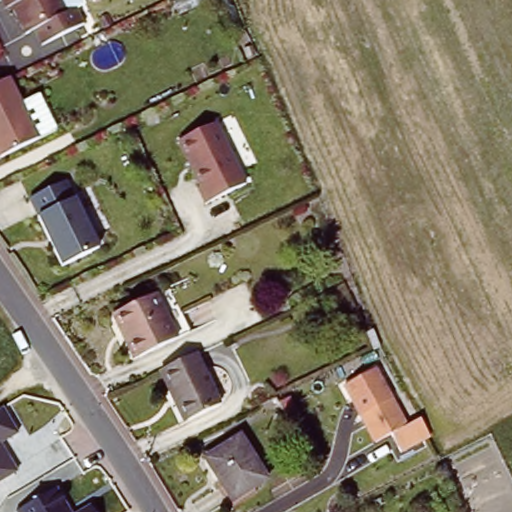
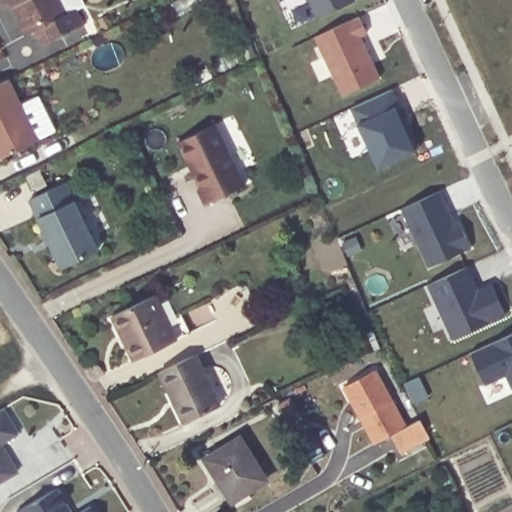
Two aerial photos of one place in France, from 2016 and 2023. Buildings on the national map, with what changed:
unchanged [(9,0),(67,0),(71,9),(80,4),(88,21),(47,41),(40,25),(31,30),(16,1),(10,4),(9,0)]
new [(316,16),(309,0),(352,0),(316,16)]
new [(340,94),(315,35),(359,16),(366,34),(360,37),(378,77),(340,94)]
unchanged [(1,158),(0,155),(0,83),(9,79),(38,139),(1,158)]
new [(378,166),(358,122),(351,108),(390,90),(396,106),(416,149),(378,166)]
unchanged [(193,188),(196,186),(174,140),(211,122),(240,184),(201,203),(193,188)]
unchanged [(60,183),(92,250),(56,268),(24,200),(60,183)]
new [(427,265),(402,208),(440,191),(455,223),(458,221),(469,248),(427,265)]
new [(453,338),(429,285),(468,267),(480,290),(491,284),(505,314),(453,338)]
unchanged [(155,300),(176,344),(138,363),(125,336),(121,338),(112,320),(155,300)]
unchanged [(373,350),(366,332),(372,330),(379,347),(373,350)]
unchanged [(200,359),(225,410),(193,425),(178,394),(174,396),(165,376),(200,359)]
unchanged [(397,400),(411,426),(380,443),(366,416),(350,386),(380,369),(397,400)]
unchanged [(19,433),(0,444),(17,472),(0,481),(0,408),(2,407),(19,433)]
unchanged [(420,420),(430,439),(402,453),(393,436),(411,426),(410,425),(420,420)]
unchanged [(271,485),(237,506),(210,464),(245,442),(271,485)]
unchanged [(17,512),(15,509),(56,486),(72,512),(17,512)]
unchanged [(96,512),(73,512),(91,501),(96,512)]

